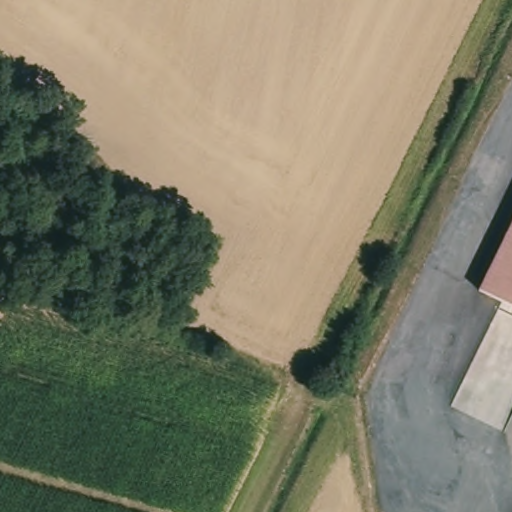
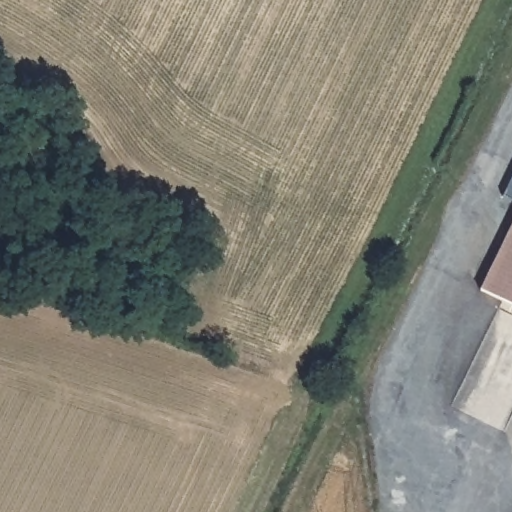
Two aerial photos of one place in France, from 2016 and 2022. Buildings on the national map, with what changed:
unchanged [(478,291),(512,229),(512,308),(478,291)]

